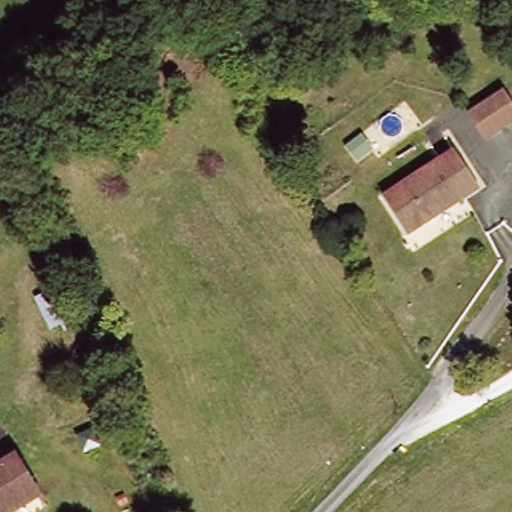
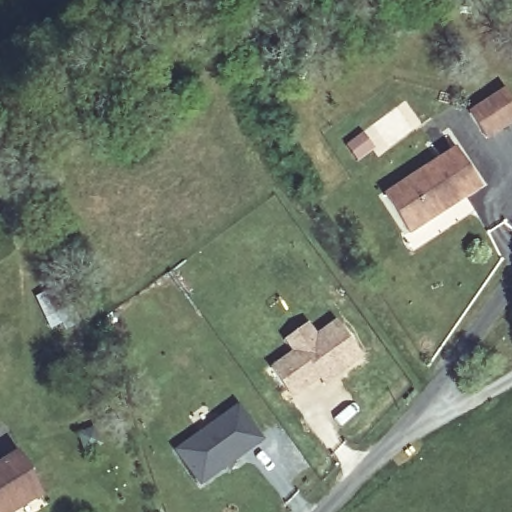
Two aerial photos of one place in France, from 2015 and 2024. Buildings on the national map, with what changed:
unchanged [(512,105),(512,123),(483,140),(467,115),(505,92),(512,105)]
unchanged [(141,120),(147,130),(135,135),(130,126),(141,120)]
unchanged [(470,147),(493,185),(420,230),(396,192),(470,147)]
new [(270,367),(290,353),(282,342),(308,323),(316,335),(336,320),(362,358),(326,386),(320,380),(292,399),(270,367)]
new [(174,450),(239,405),(265,441),(200,486),(174,450)]
unchanged [(29,453),(49,495),(17,512),(0,512),(0,467),(29,453)]

